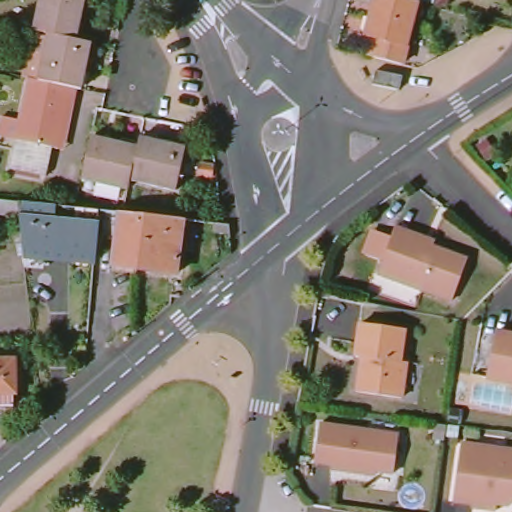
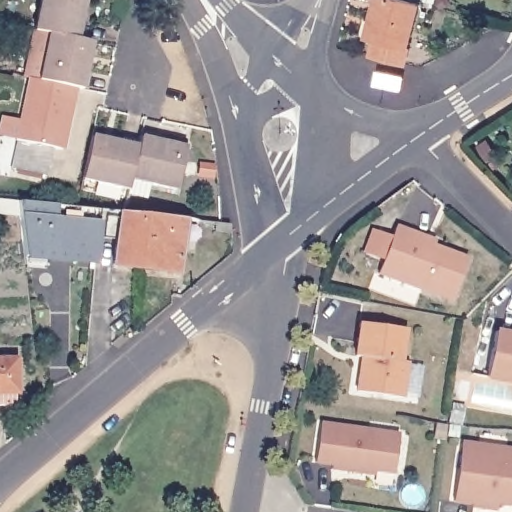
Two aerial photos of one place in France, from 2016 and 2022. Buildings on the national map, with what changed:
unchanged [(35,30),(41,0),(84,0),(76,39),(49,34),(35,30)]
unchanged [(381,32),(371,29),(378,0),(422,0),(407,59),(375,50),(381,32)]
unchanged [(76,39),(91,43),(81,87),(76,86),(38,80),(49,34),(76,39)]
unchanged [(378,80),(381,66),(408,70),(406,84),(378,80)]
unchanged [(38,80),(76,86),(74,104),(68,104),(58,149),(51,147),(45,175),(9,168),(15,139),(29,79),(38,80)]
unchanged [(131,179),(128,189),(82,178),(91,136),(138,147),(131,179)]
unchanged [(138,147),(141,136),(186,147),(176,189),(131,179),(138,147)]
unchanged [(14,215),(0,214),(0,201),(13,202),(14,202),(14,215)]
unchanged [(93,210),(88,264),(20,258),(19,258),(14,202),(68,208),(93,210)]
unchanged [(116,212),(191,219),(191,220),(186,251),(174,250),(171,274),(108,265),(110,239),(96,237),(99,211),(99,210),(116,212)]
unchanged [(212,222),(214,223),(223,224),(224,224),(224,231),(208,230),(209,222),(212,222)]
unchanged [(426,237),(424,242),(466,258),(449,299),(376,271),(394,224),(426,237)]
unchanged [(404,328),(399,360),(405,361),(399,396),(354,389),(359,364),(361,364),(363,356),(354,354),(359,322),(404,328)]
unchanged [(494,329),(512,333),(512,382),(483,375),(494,329)]
unchanged [(0,401),(0,356),(15,356),(15,389),(13,389),(13,401),(0,401)]
unchanged [(364,471),(329,467),(329,462),(313,459),(318,420),(397,431),(392,470),(373,468),(373,472),(364,471)]
unchanged [(512,497),(504,503),(494,501),(493,507),(476,504),(477,502),(451,497),(460,439),(512,447),(512,497)]

